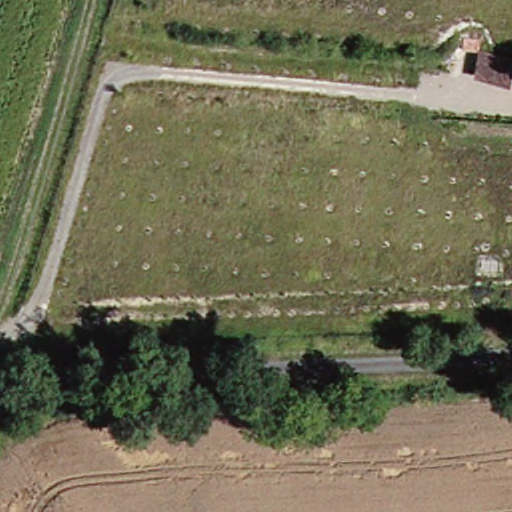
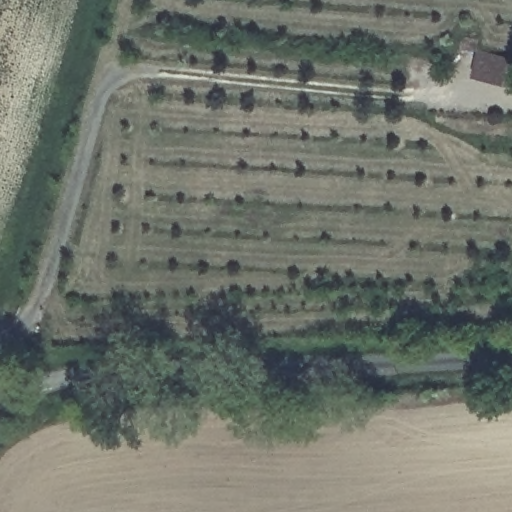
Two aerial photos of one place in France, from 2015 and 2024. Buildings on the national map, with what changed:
unchanged [(512,56),(512,86),(473,78),(479,47),(512,56)]

